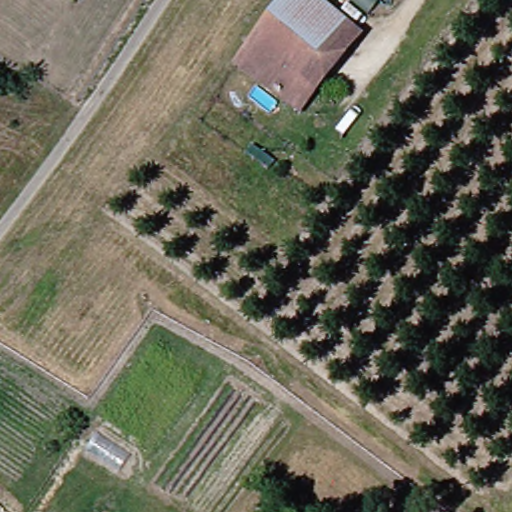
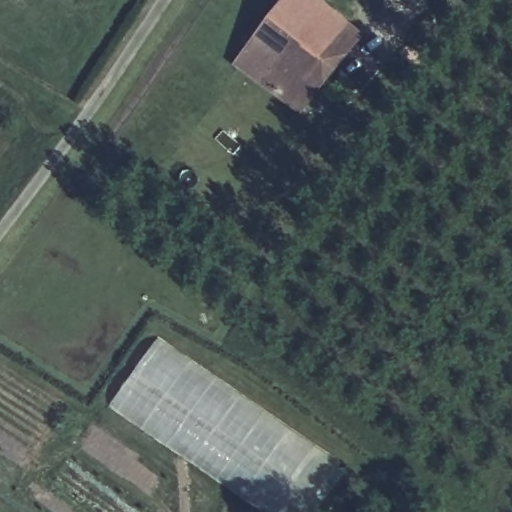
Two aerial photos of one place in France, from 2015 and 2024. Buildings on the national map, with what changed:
unchanged [(305,72),(318,85),(304,105),(243,62),(284,0),(321,0),(342,14),(305,72)]
unchanged [(361,29),(318,85),(305,72),(342,14),(361,29)]
new [(320,512),(258,512),(109,406),(159,336),(352,468),(320,512)]

